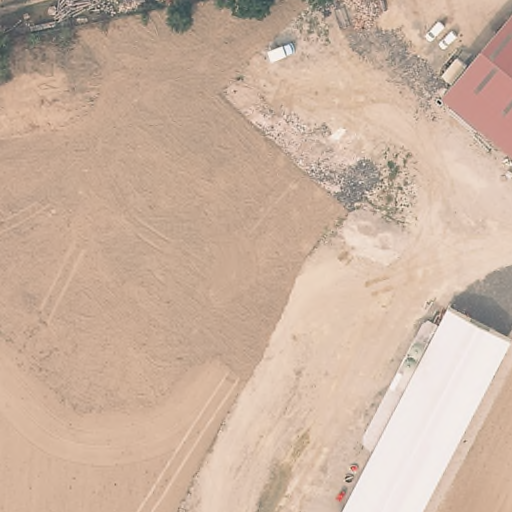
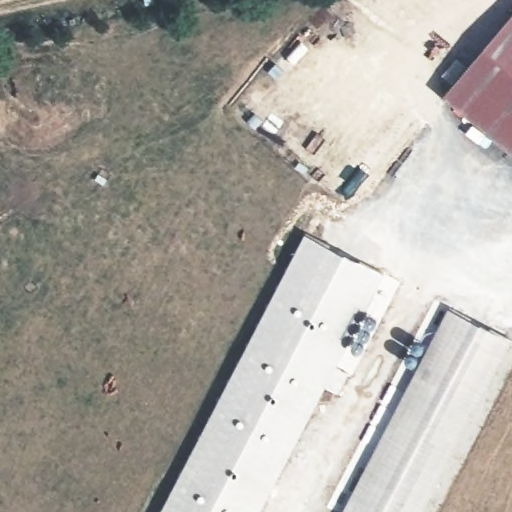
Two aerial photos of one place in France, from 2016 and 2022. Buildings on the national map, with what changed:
unchanged [(461,78),(512,18),(512,157),(443,99),(461,78)]
new [(335,368),(349,374),(338,393),(325,385),(259,512),(159,512),(305,234),(383,275),(335,368)]
unchanged [(449,307),(512,339),(512,343),(424,512),(343,512),(449,307)]

